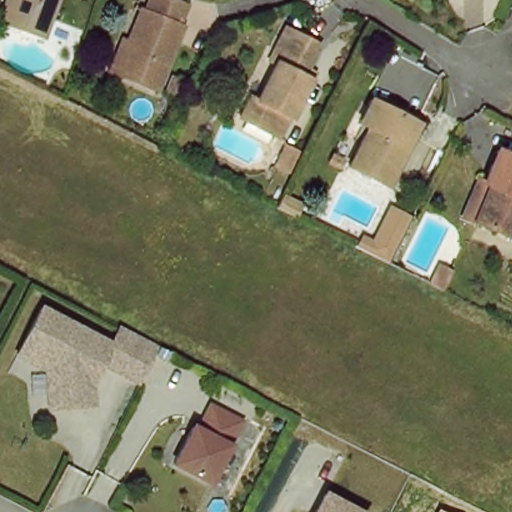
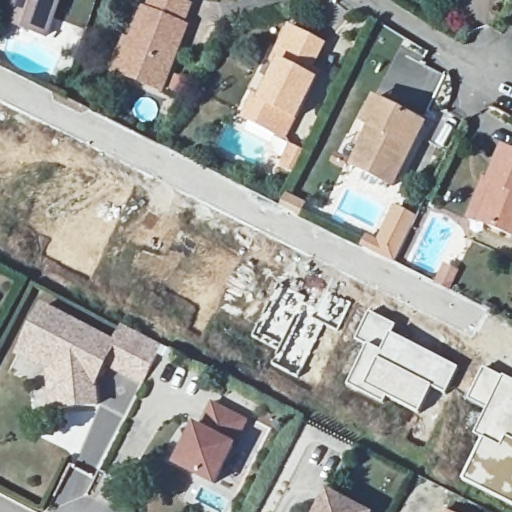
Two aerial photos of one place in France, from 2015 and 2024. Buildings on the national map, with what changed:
unchanged [(5,25),(15,0),(60,0),(45,40),(5,25)]
unchanged [(133,41),(148,5),(155,7),(157,0),(188,0),(195,3),(187,20),(191,24),(165,90),(127,75),(113,69),(127,38),(133,41)]
unchanged [(322,47),(310,70),(319,72),(314,83),(296,119),(280,114),(272,133),(245,120),(255,98),(262,100),(277,66),(270,63),(278,46),(286,30),(322,47)]
unchanged [(427,119),(396,182),(353,161),(383,99),(427,119)]
unchanged [(512,152),(512,232),(481,217),(498,185),(488,178),(505,148),(512,152)]
unchanged [(281,208),(285,199),(307,207),(302,218),(281,208)]
unchanged [(369,234),(382,239),(397,207),(415,216),(395,261),(362,247),(369,234)]
new [(445,393),(432,387),(417,413),(387,398),(383,406),(347,387),(367,346),(355,340),(368,311),(397,325),(392,333),(458,367),(445,393)]
unchanged [(48,373),(18,358),(22,352),(42,312),(113,348),(123,330),(162,350),(143,387),(105,367),(95,387),(95,409),(59,412),(52,412),(48,373)]
new [(480,441),(473,437),(487,411),(465,400),(482,366),(512,381),(512,507),(459,481),(480,441)]
unchanged [(205,433),(217,410),(250,426),(233,458),(218,487),(180,468),(200,431),(205,433)]
unchanged [(328,491),(373,512),(318,512),(328,491)]
unchanged [(443,510),(448,512),(442,512),(443,510)]

